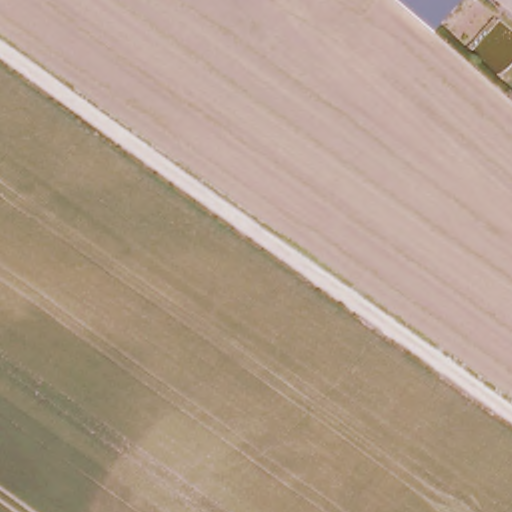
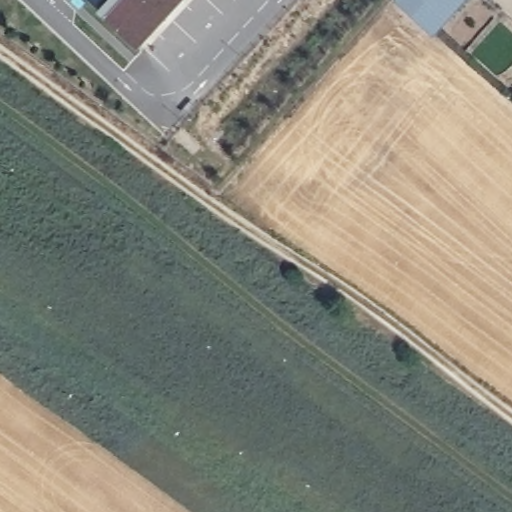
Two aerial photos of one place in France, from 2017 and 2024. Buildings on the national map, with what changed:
new [(96,14),(109,0),(183,0),(137,50),(96,14)]
unchanged [(396,0),(456,0),(428,30),(396,0)]

